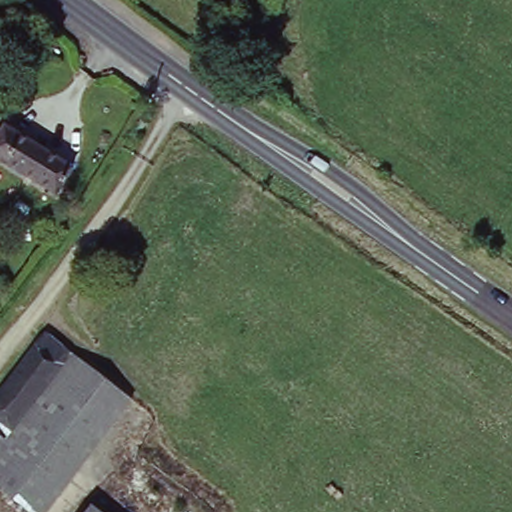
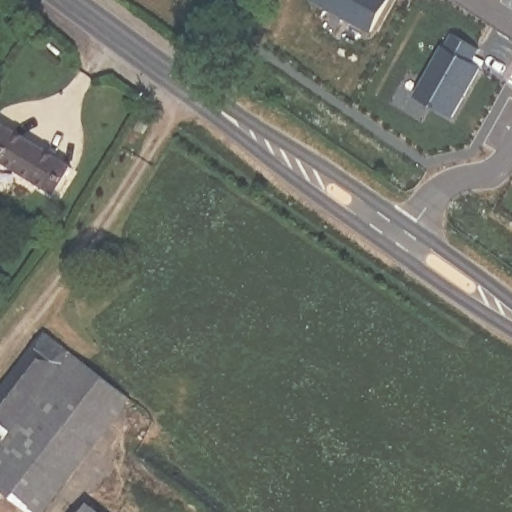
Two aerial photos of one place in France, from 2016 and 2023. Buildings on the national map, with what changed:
new [(312,4),(314,0),(390,0),(371,37),(312,4)]
new [(443,46),(445,48),(453,35),(479,50),(471,64),(480,69),(453,119),(415,95),(443,46)]
unchanged [(62,166),(48,189),(0,161),(0,128),(62,166)]
unchanged [(38,329),(67,349),(9,439),(0,434),(0,386),(38,329)]
unchanged [(9,439),(67,349),(127,389),(45,512),(41,512),(0,486),(0,434),(9,439)]
unchanged [(89,500),(103,512),(79,512),(89,500)]

